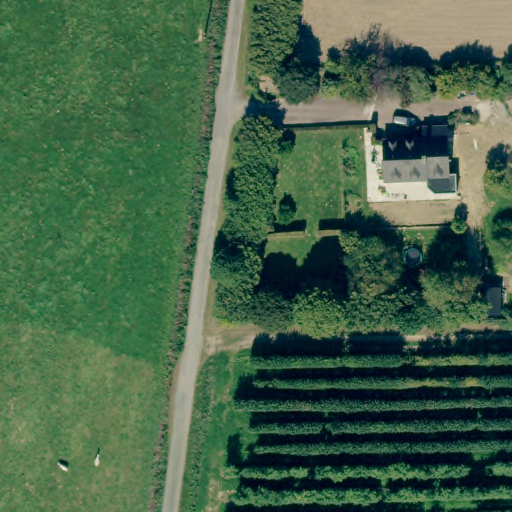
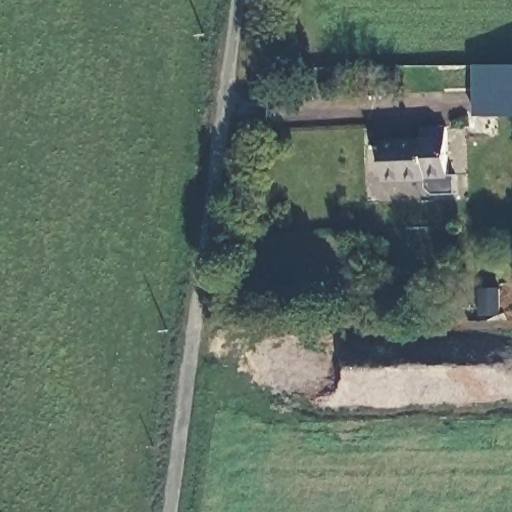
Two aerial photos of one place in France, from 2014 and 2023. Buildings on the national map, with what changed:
new [(512,115),(475,115),(476,64),(512,64),(512,115)]
unchanged [(381,141),(421,139),(421,127),(444,126),(445,175),(426,175),(425,180),(383,180),(381,141)]

